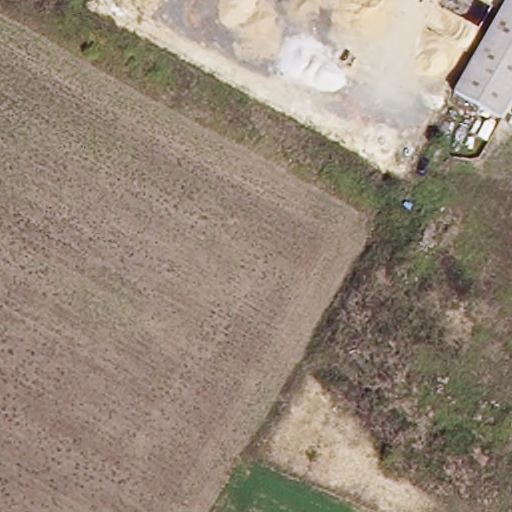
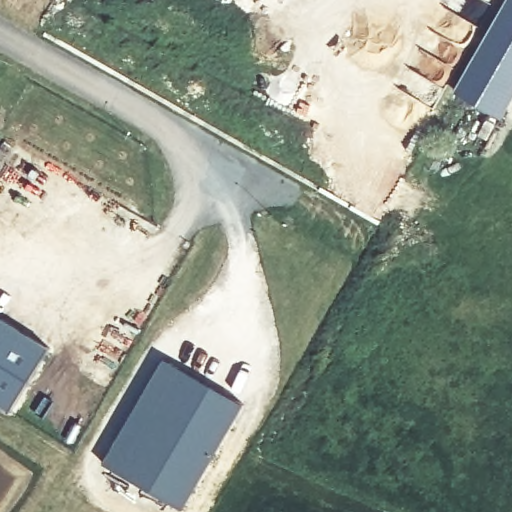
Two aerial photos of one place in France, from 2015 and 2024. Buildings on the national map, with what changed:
unchanged [(512,0),(512,102),(501,122),(452,93),(506,0),(512,0)]
new [(9,412),(0,407),(0,319),(47,349),(9,412)]
new [(162,361),(181,371),(151,423),(133,413),(162,361)]
new [(133,413),(151,423),(181,371),(241,406),(181,511),(102,466),(133,413)]

